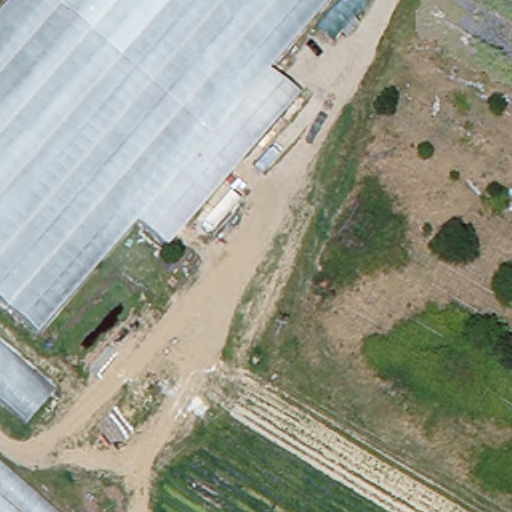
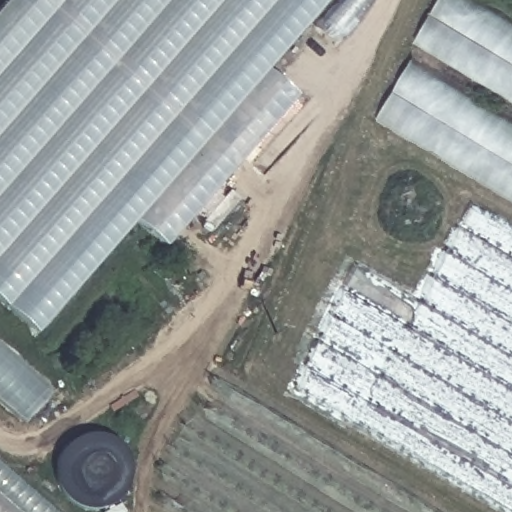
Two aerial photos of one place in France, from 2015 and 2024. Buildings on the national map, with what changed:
unchanged [(12,0),(328,0),(271,66),(298,93),(169,242),(138,218),(40,329),(0,294),(0,13),(12,0)]
new [(512,104),(414,46),(442,0),(471,0),(512,24),(512,104)]
new [(512,199),(381,120),(413,61),(512,122),(512,199)]
unchanged [(0,386),(0,341),(56,389),(33,414),(0,386)]
unchanged [(56,512),(0,512),(0,462),(56,512)]

